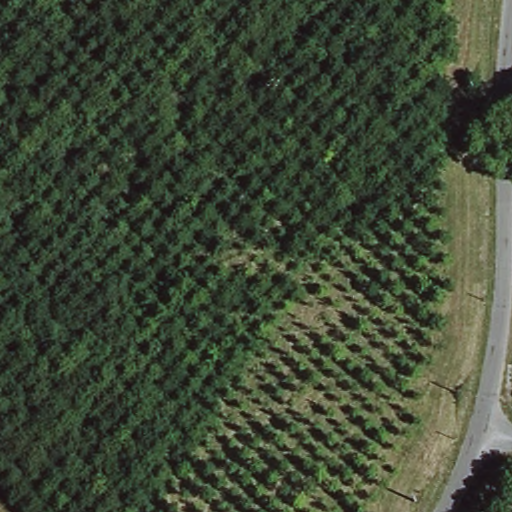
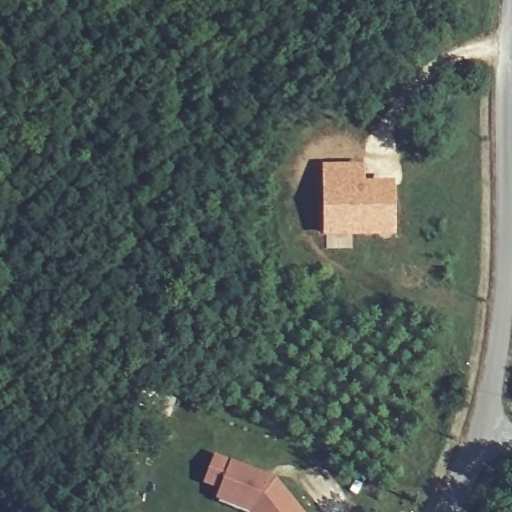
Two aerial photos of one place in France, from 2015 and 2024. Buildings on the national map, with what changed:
new [(365,163),(365,180),(396,180),(396,239),(352,239),(352,249),(325,249),(325,237),(322,237),(321,163),(365,163)]
new [(212,477),(222,452),(238,460),(228,484),(212,477)]
new [(259,506),(225,493),(238,460),(281,476),(309,512),(264,512),(259,506)]

